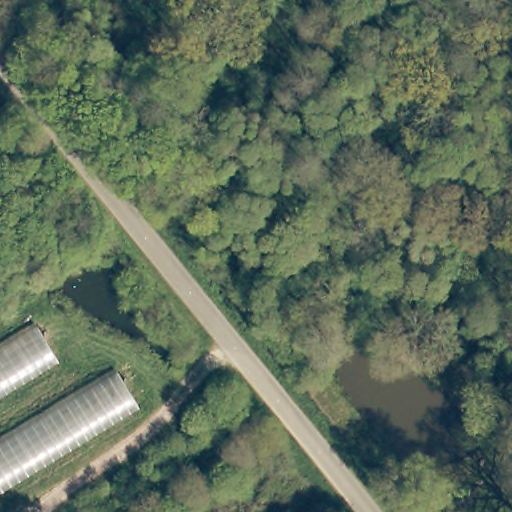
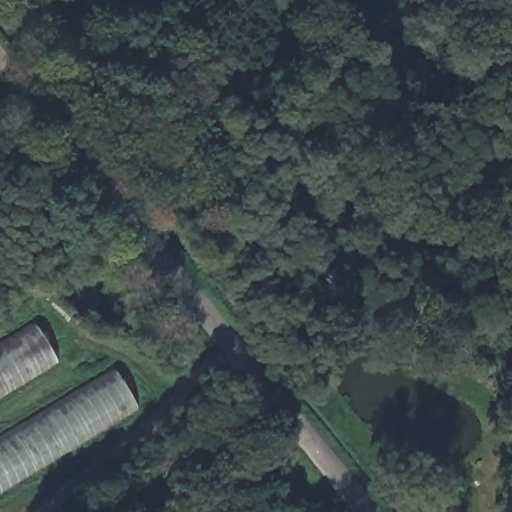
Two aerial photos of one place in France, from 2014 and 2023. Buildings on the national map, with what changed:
unchanged [(37,329),(56,359),(0,393),(0,351),(37,329)]
unchanged [(116,375),(135,406),(0,487),(0,444),(116,375)]

